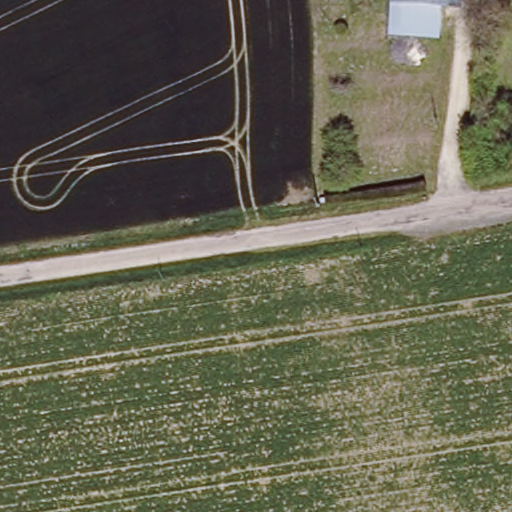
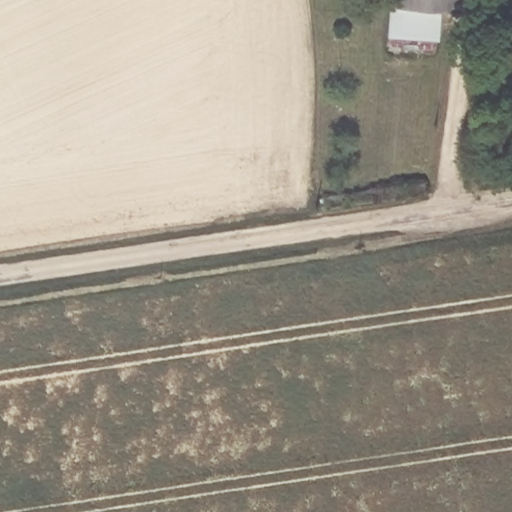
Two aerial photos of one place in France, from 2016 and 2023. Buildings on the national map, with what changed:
unchanged [(388,4),(389,0),(460,0),(458,12),(438,10),(435,9),(388,4)]
unchanged [(432,39),(386,35),(388,4),(435,9),(432,39)]

